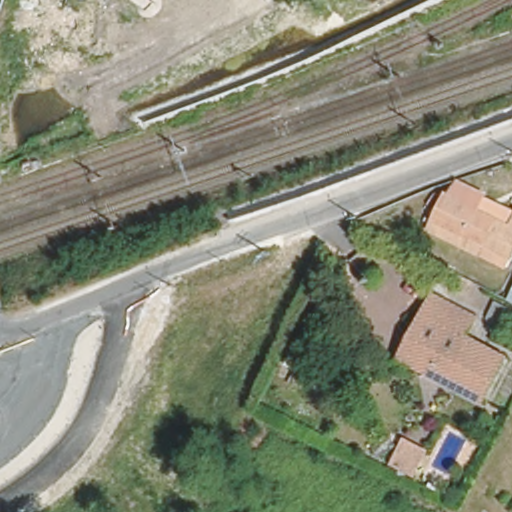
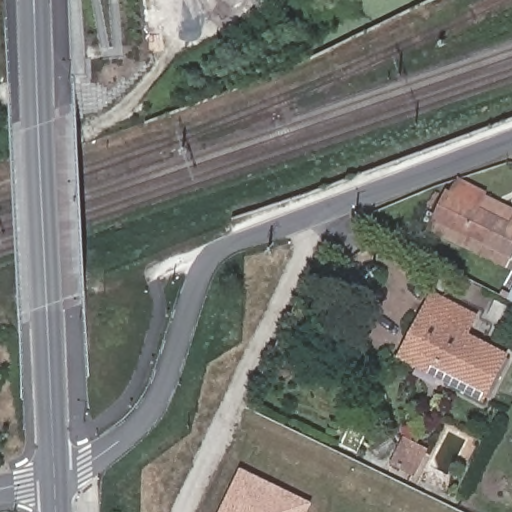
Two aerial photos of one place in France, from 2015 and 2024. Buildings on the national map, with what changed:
unchanged [(479,250),(416,220),(428,194),(430,193),(444,201),(451,186),(452,186),(481,200),(498,208),(512,211),(512,256),(507,266),(479,250)]
demolished [(512,214),(500,208),(512,187),(512,214)]
unchanged [(419,305),(429,286),(471,307),(461,327),(502,347),(480,390),(445,373),(397,349),(419,305)]
unchanged [(512,294),(511,294),(512,292),(512,294)]
unchanged [(425,449),(413,474),(391,464),(403,439),(425,449)]
new [(307,512),(219,512),(239,469),(311,503),(307,512)]

